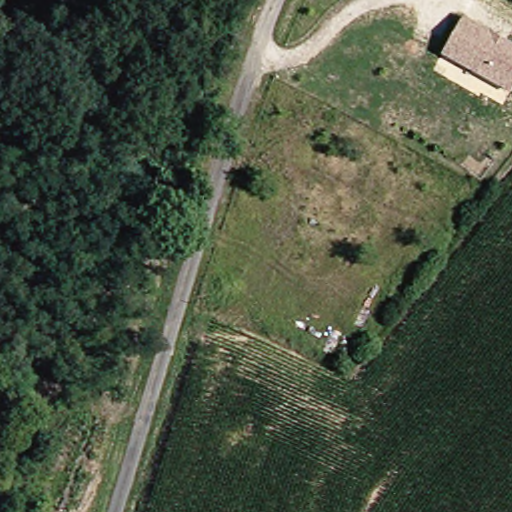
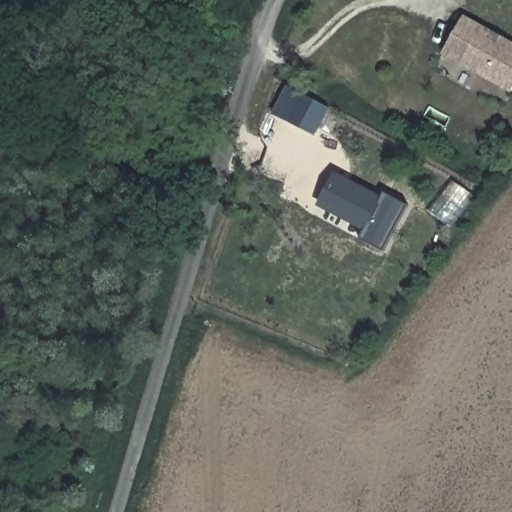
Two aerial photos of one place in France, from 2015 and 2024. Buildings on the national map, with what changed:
unchanged [(512,77),(503,93),(434,54),(454,19),(512,53),(512,77)]
new [(382,198),(384,194),(407,205),(384,250),(361,238),(366,228),(318,207),(336,174),(382,198)]

